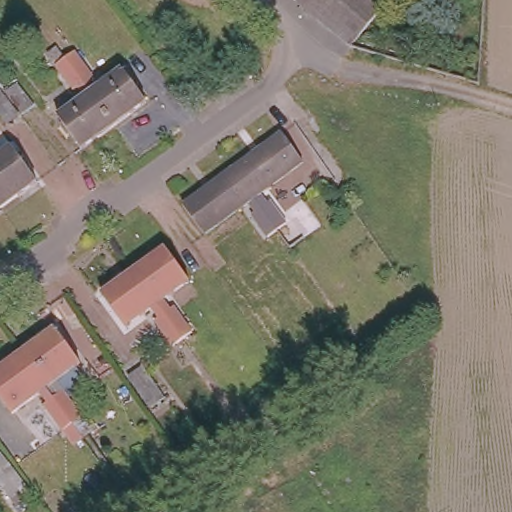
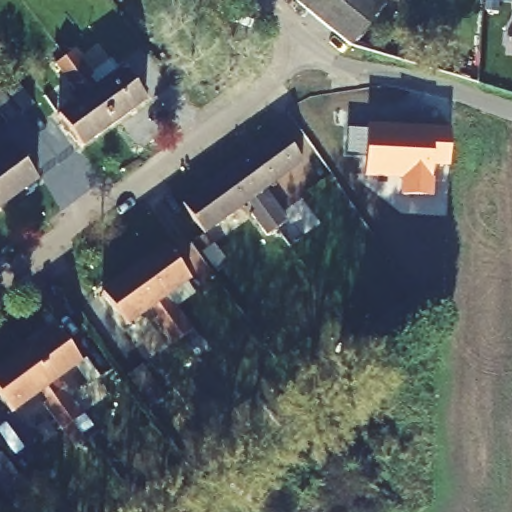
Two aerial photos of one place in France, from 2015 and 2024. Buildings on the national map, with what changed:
unchanged [(372,0),(377,4),(344,45),(287,0),(372,0)]
unchanged [(65,58),(74,52),(92,76),(87,80),(93,88),(120,67),(145,100),(113,123),(65,58)]
unchanged [(113,123),(82,147),(57,115),(85,95),(78,86),(73,90),(55,66),(65,58),(113,123)]
unchanged [(20,84),(37,106),(24,115),(7,93),(20,84)]
unchanged [(20,118),(7,127),(0,119),(0,92),(20,118)]
demolished [(305,117),(319,137),(307,145),(292,125),(305,117)]
new [(402,180),(365,178),(366,159),(346,159),(347,130),(365,132),(366,126),(452,130),(450,169),(433,167),(432,199),(402,196),(402,180)]
unchanged [(230,164),(280,129),(302,159),(258,190),(265,199),(268,196),(285,218),(275,225),(230,164)]
unchanged [(10,146),(35,181),(0,206),(0,153),(10,146)]
unchanged [(275,225),(265,232),(250,211),(255,207),(248,199),(203,231),(180,200),(230,164),(275,225)]
unchanged [(128,267),(160,245),(182,277),(156,295),(162,304),(167,301),(187,328),(178,334),(128,267)]
unchanged [(216,248),(232,268),(222,276),(207,255),(216,248)]
unchanged [(178,334),(167,342),(147,316),(152,312),(145,303),(118,323),(95,291),(128,267),(178,334)]
unchanged [(20,355),(54,330),(77,362),(55,377),(63,389),(61,391),(80,417),(70,424),(20,355)]
unchanged [(70,424),(58,432),(40,407),(43,403),(35,392),(8,412),(0,401),(0,368),(20,355),(70,424)]
unchanged [(2,454),(32,495),(15,507),(0,486),(0,455),(2,454)]

